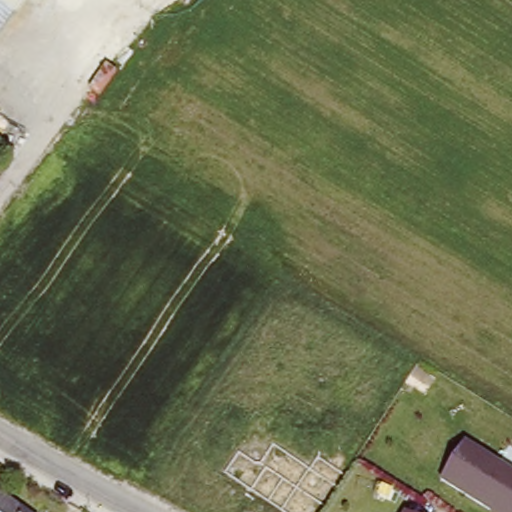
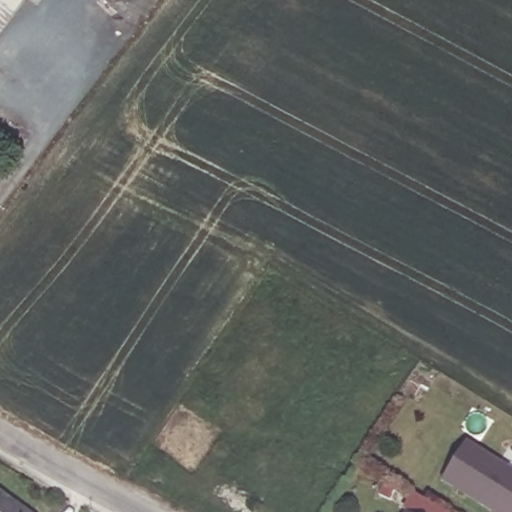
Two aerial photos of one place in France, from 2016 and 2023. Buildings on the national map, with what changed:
unchanged [(0,0),(23,0),(14,13),(0,2),(0,0)]
unchanged [(0,30),(0,2),(14,13),(0,30)]
unchanged [(437,484),(463,442),(512,469),(512,512),(483,512),(437,484)]
unchanged [(0,488),(35,512),(0,512),(0,488)]

